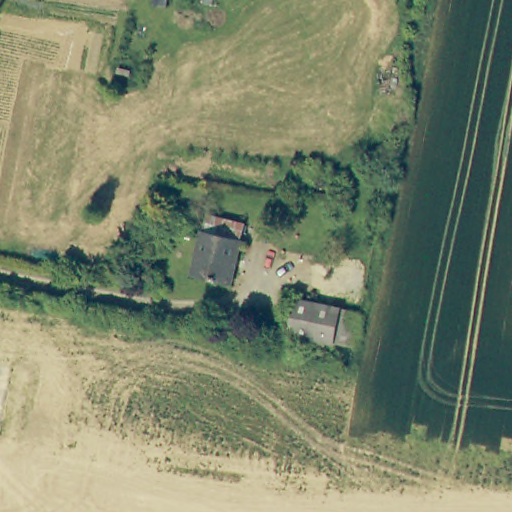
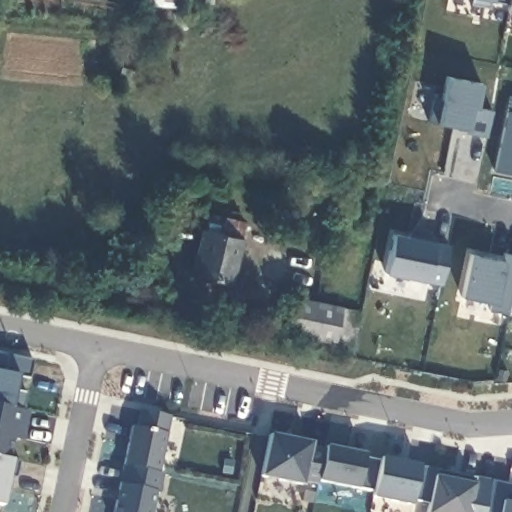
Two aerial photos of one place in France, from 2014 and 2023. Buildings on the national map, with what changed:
new [(509,4),(492,2),(489,10),(471,5),(473,0),(512,0),(512,15),(508,14),(509,4)]
new [(510,97),(512,98),(512,177),(494,174),(510,97)]
unchanged [(246,229),(236,274),(195,265),(205,220),(246,229)]
new [(492,310),(493,305),(459,300),(469,254),(485,257),(487,253),(503,256),(505,251),(512,253),(512,301),(509,312),(492,310)]
unchanged [(355,347),(294,333),(301,300),(363,313),(355,347)]
new [(512,301),(512,312),(509,312),(512,301)]
new [(29,378),(19,376),(15,391),(27,395),(23,412),(29,413),(21,442),(16,441),(11,460),(0,458),(0,354),(34,361),(29,378)]
new [(139,428),(143,410),(171,417),(167,433),(159,471),(164,473),(160,493),(156,491),(152,512),(115,512),(134,426),(139,428)]
new [(270,434),(312,442),(311,446),(323,450),(324,446),(365,455),(364,458),(378,460),(372,490),(358,487),(358,489),(318,481),(318,485),(304,481),(304,486),(262,477),(270,434)]
new [(11,460),(1,505),(0,505),(0,458),(11,460)]
new [(435,476),(430,503),(414,500),(412,505),(371,497),(372,490),(378,460),(381,458),(419,466),(436,469),(435,476)]
new [(436,469),(475,477),(474,485),(469,512),(428,512),(435,476),(436,469)]
new [(512,485),(512,495),(504,493),(504,501),(512,503),(512,512),(485,512),(491,481),(512,485)]

